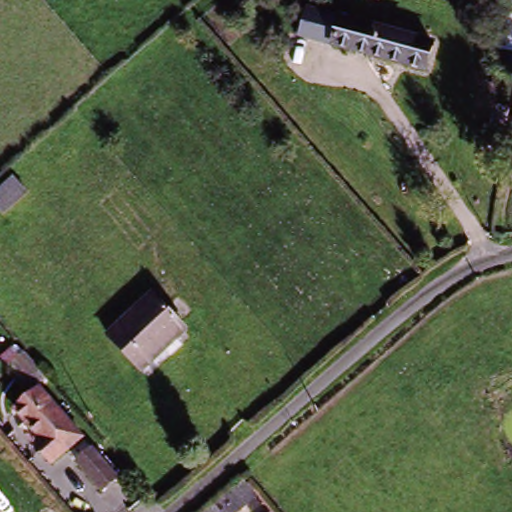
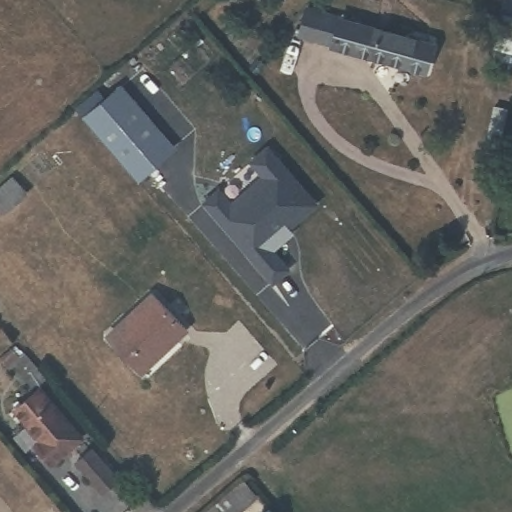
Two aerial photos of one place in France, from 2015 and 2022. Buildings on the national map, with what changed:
new [(512,69),(492,65),(504,0),(512,0),(512,69)]
unchanged [(418,66),(327,44),(298,38),(307,7),(335,13),(333,19),(424,43),(418,66)]
new [(162,132),(175,148),(137,180),(85,118),(123,86),(137,103),(162,132)]
unchanged [(504,110),(501,130),(487,128),(490,108),(504,110)]
new [(269,146),(319,205),(270,245),(289,269),(275,281),(206,202),(269,146)]
unchanged [(12,174),(27,191),(0,210),(0,184),(12,174)]
unchanged [(139,374),(106,336),(152,296),(185,334),(139,374)]
unchanged [(78,441),(52,464),(39,450),(45,446),(13,410),(34,392),(78,441)]
unchanged [(115,483),(101,495),(75,466),(89,452),(115,483)]
unchanged [(234,512),(209,512),(242,483),(252,497),(234,512)]

